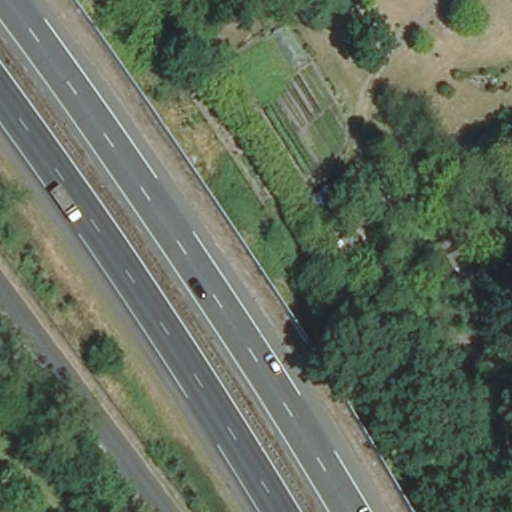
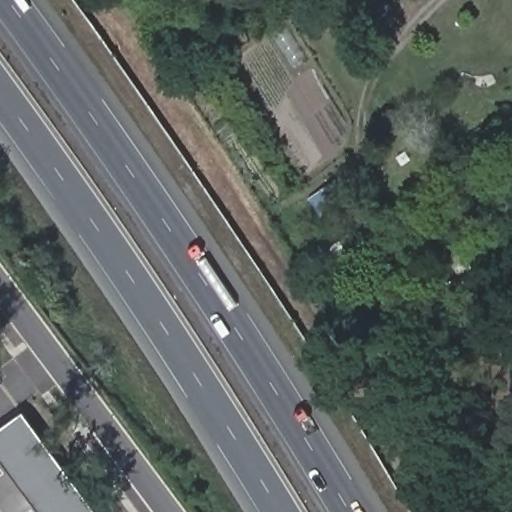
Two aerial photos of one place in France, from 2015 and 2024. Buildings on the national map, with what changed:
unchanged [(361,197),(326,224),(307,194),(343,168),(361,197)]
new [(22,412),(95,510),(94,510),(96,512),(38,512),(0,462),(0,428),(22,412)]

